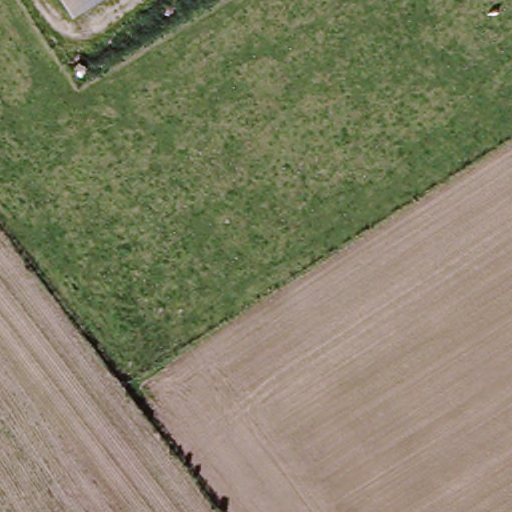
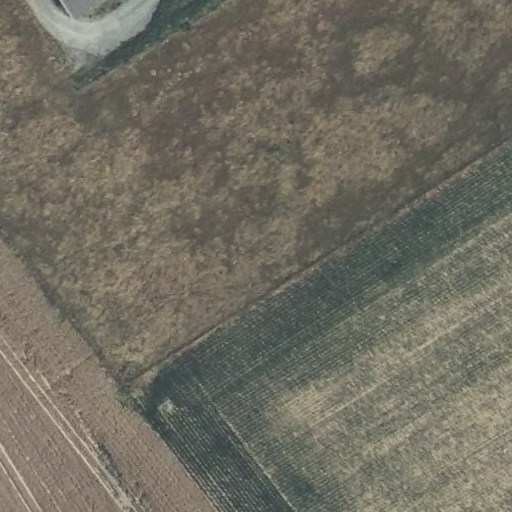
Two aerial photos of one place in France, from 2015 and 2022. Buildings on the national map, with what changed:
unchanged [(98,0),(75,15),(65,0),(98,0)]

